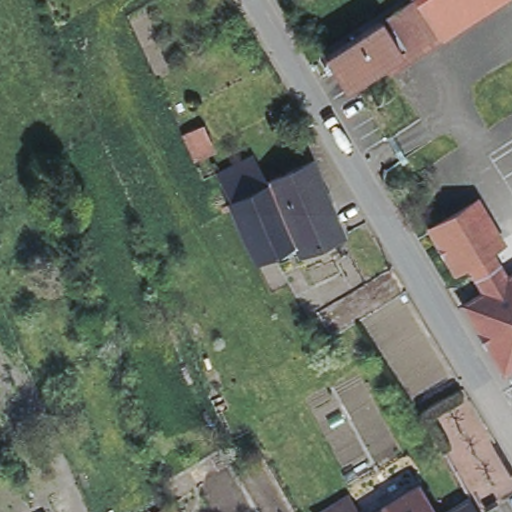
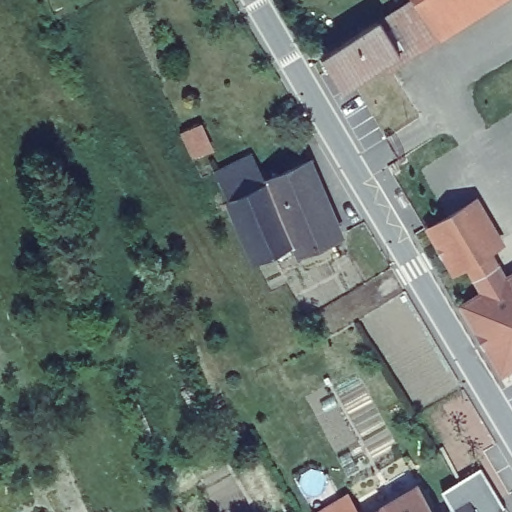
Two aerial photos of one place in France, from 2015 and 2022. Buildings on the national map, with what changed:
unchanged [(489,0),(383,65),(379,59),(360,29),(404,1),(405,0),(489,0)]
unchanged [(404,0),(405,0),(404,1),(404,0)]
unchanged [(340,84),(321,54),(360,29),(379,59),(340,84)]
unchanged [(300,251),(295,241),(272,252),(256,260),(227,200),(230,198),(265,181),(267,181),(268,180),(287,171),(281,159),(306,146),(310,156),(312,160),(324,187),(330,202),(342,230),(300,251)]
unchanged [(252,155),(265,181),(230,198),(216,170),(252,155)]
unchanged [(507,367),(470,304),(468,300),(488,288),(479,274),(471,260),(460,267),(451,252),(447,255),(439,240),(442,238),(434,224),(481,196),(507,239),(496,246),(504,259),(512,274),(512,364),(507,367)]
new [(507,510),(505,512),(475,512),(469,501),(452,510),(442,492),(481,468),(507,510)]
unchanged [(421,488),(435,512),(382,512),(382,511),(421,488)]
unchanged [(349,498),(356,512),(324,512),(349,498)]
unchanged [(165,505),(171,500),(178,511),(177,512),(155,512),(155,511),(165,505)]
unchanged [(452,510),(469,501),(475,512),(450,512),(452,510)]
unchanged [(382,511),(382,512),(381,512),(382,511)]

